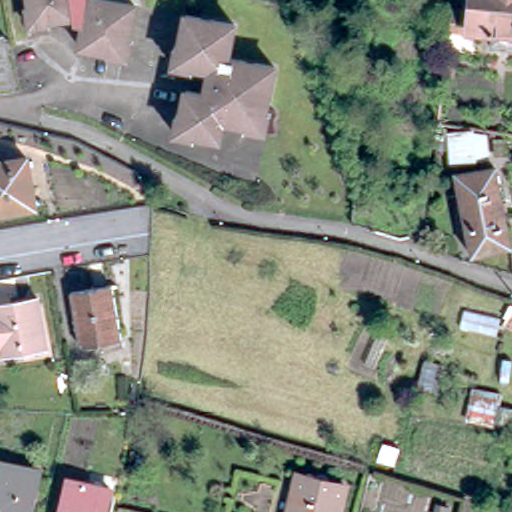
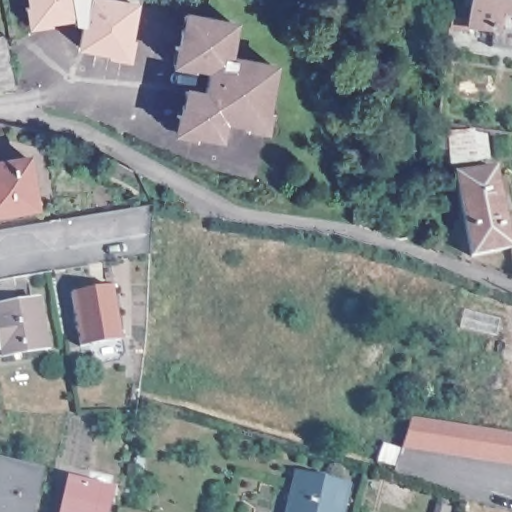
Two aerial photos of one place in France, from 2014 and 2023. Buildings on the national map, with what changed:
unchanged [(83,48),(87,19),(73,16),(30,18),(28,0),(120,0),(135,4),(126,56),(83,48)]
unchanged [(496,30),(479,28),(476,50),(448,47),(449,41),(452,10),(452,4),(465,6),(466,0),(512,0),(512,45),(495,44),(496,30)]
unchanged [(184,117),(190,86),(209,90),(215,64),(185,58),(191,14),(237,21),(232,55),(276,64),(266,126),(217,117),(214,136),(186,132),(184,117)]
unchanged [(0,88),(0,34),(3,33),(12,85),(0,88)]
unchanged [(470,156),(455,159),(450,126),(465,129),(470,156)]
unchanged [(487,129),(491,151),(477,155),(472,126),(487,129)]
unchanged [(34,203),(0,208),(0,160),(25,156),(34,203)]
unchanged [(509,245),(470,253),(453,173),(493,165),(509,245)]
unchanged [(120,336),(78,343),(69,290),(110,283),(120,336)]
unchanged [(31,296),(40,342),(0,349),(0,301),(31,296)]
new [(476,459),(461,457),(447,455),(433,453),(419,451),(400,448),(408,418),(423,420),(437,422),(451,424),(466,426),(480,428),(495,430),(509,432),(512,432),(512,464),(505,463),(490,461),(476,459)]
unchanged [(27,512),(0,512),(0,465),(36,473),(27,512)]
unchanged [(293,470),(340,480),(332,512),(284,512),(293,470)]
unchanged [(67,471),(110,480),(102,512),(58,512),(67,471)]

